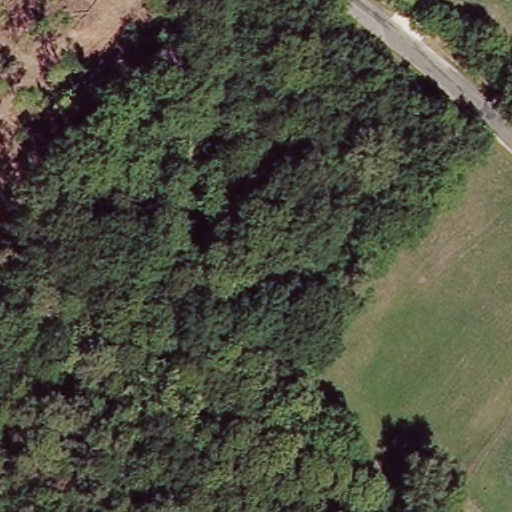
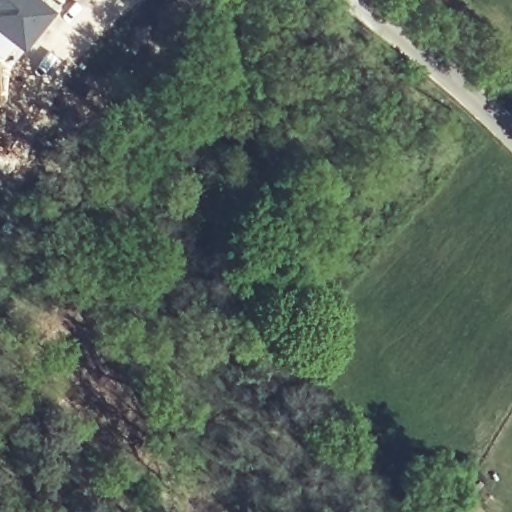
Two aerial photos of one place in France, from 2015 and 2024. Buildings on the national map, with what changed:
new [(0,33),(0,0),(39,0),(56,14),(26,52),(0,33)]

